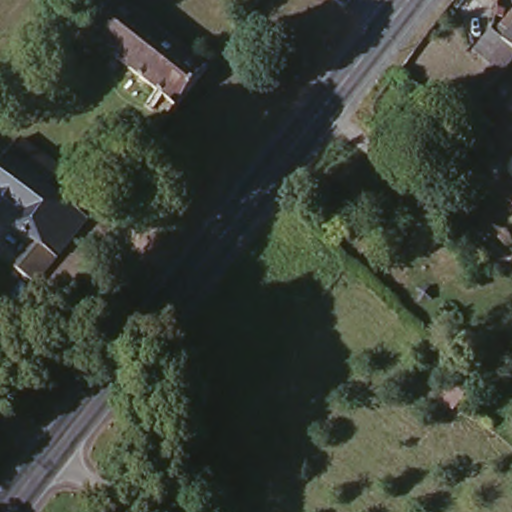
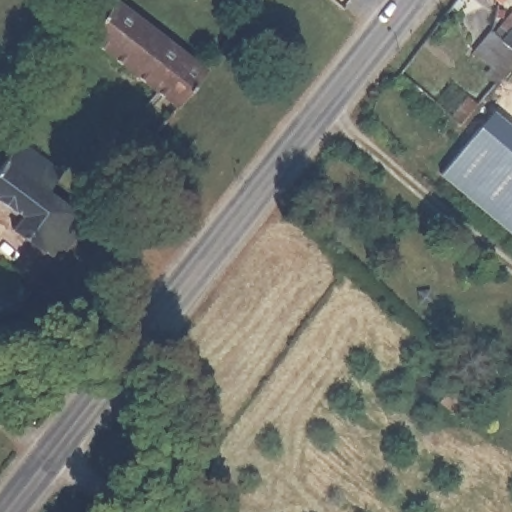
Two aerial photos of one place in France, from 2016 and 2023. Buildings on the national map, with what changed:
unchanged [(481,0),(493,0),(489,6),(481,0)]
unchanged [(180,120),(89,49),(119,12),(210,83),(180,120)]
unchanged [(479,43),(495,22),(500,28),(512,12),(512,59),(505,68),(479,43)]
unchanged [(471,90),(479,97),(460,119),(452,111),(471,90)]
new [(512,230),(444,170),(497,110),(512,123),(512,230)]
unchanged [(97,163),(106,150),(97,142),(115,119),(124,126),(132,117),(154,134),(140,151),(118,179),(97,163)]
unchanged [(21,140),(61,169),(48,187),(27,173),(7,159),(21,140)]
unchanged [(36,242),(17,227),(26,215),(0,196),(0,168),(7,159),(27,173),(48,187),(92,218),(60,259),(39,285),(18,268),(36,242)]

